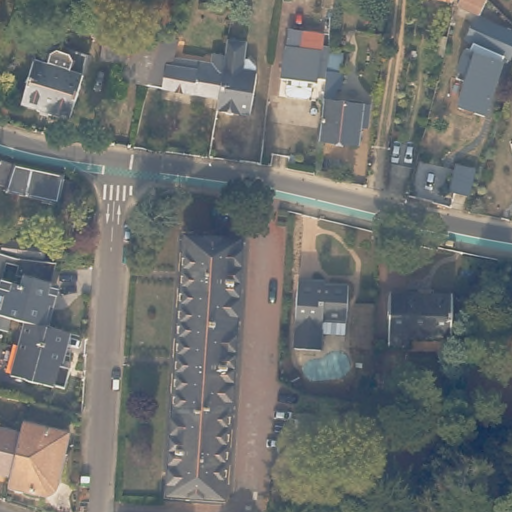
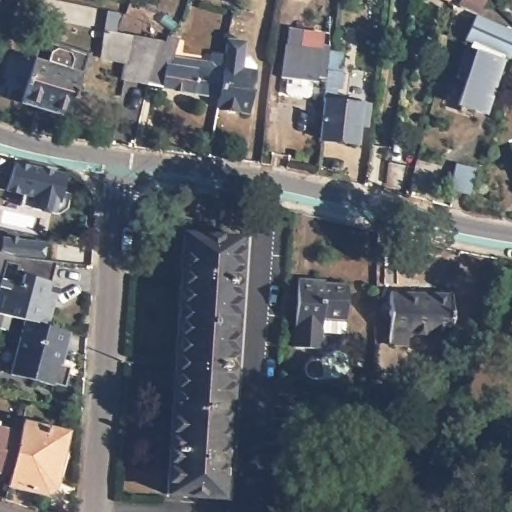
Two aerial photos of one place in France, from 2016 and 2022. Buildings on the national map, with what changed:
unchanged [(449,7),(420,0),(452,0),(449,7)]
unchanged [(474,18),(454,7),(458,0),(476,0),(482,3),(474,18)]
unchanged [(497,66),(498,66),(479,118),(452,109),(461,85),(451,81),(461,53),(465,54),(469,46),(462,43),(473,21),(512,40),(512,45),(504,63),(500,60),(497,66)]
unchanged [(458,34),(452,54),(442,52),(443,50),(448,31),(458,34)]
unchanged [(147,89),(125,84),(128,71),(130,64),(133,41),(155,45),(160,46),(147,89)]
unchanged [(222,76),(218,102),(147,89),(160,46),(165,48),(166,41),(177,44),(170,70),(199,75),(199,73),(210,75),(213,59),(224,61),(222,76)]
unchanged [(225,56),(227,44),(244,47),(241,66),(251,67),(254,71),(253,76),(255,76),(249,118),(216,112),(218,102),(222,76),(224,61),(225,56)]
unchanged [(313,75),(312,82),(308,82),(306,95),(303,97),(284,95),(282,92),(284,78),(277,77),(281,48),(314,52),(314,54),(322,55),(321,71),(320,76),(313,75)]
unchanged [(70,59),(74,66),(71,75),(81,77),(69,121),(21,107),(34,64),(48,69),(51,59),(58,56),(70,59)]
unchanged [(321,71),(337,73),(335,91),(330,90),(329,102),(357,105),(365,106),(363,122),(355,121),(352,143),(315,138),(321,101),(317,101),(318,91),(320,76),(321,71)]
unchanged [(58,196),(56,200),(8,188),(9,183),(0,181),(0,158),(63,174),(62,178),(75,181),(70,199),(58,196)]
unchanged [(475,168),(468,194),(451,190),(457,164),(475,168)]
unchanged [(241,235),(223,503),(166,500),(185,231),(241,235)]
unchanged [(3,240),(43,241),(42,263),(46,263),(56,264),(53,283),(56,284),(53,299),(56,300),(49,328),(28,323),(26,322),(0,314),(0,247),(3,247),(3,240)]
unchanged [(326,320),(322,349),(297,346),(303,276),(330,278),(330,283),(354,285),(351,317),(350,322),(326,320)]
unchanged [(449,296),(449,337),(406,336),(406,345),(388,345),(388,295),(449,296)]
unchanged [(28,323),(49,328),(64,332),(63,334),(60,348),(65,349),(61,366),(71,369),(66,389),(56,386),(55,387),(13,376),(26,322),(28,323)]
unchanged [(23,421),(65,431),(66,432),(66,434),(55,483),(41,493),(8,486),(9,484),(10,480),(19,438),(23,421)]
unchanged [(0,432),(19,438),(10,480),(0,477),(0,432)]

